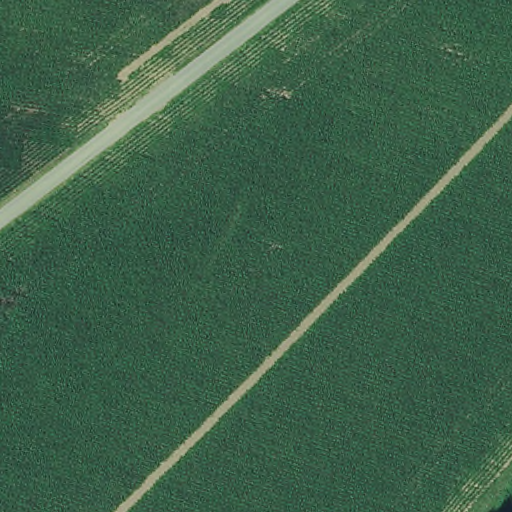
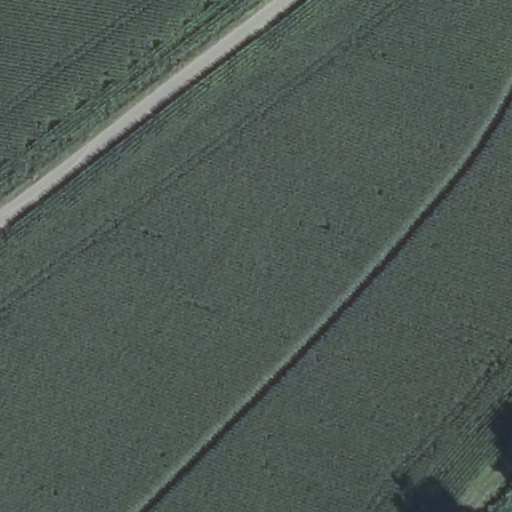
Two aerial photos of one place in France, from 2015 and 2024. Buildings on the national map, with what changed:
[]

